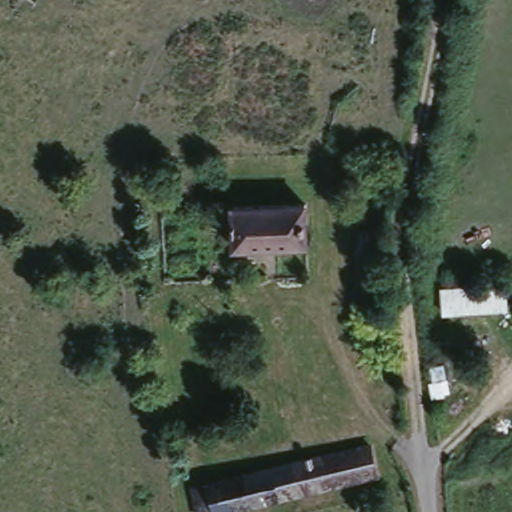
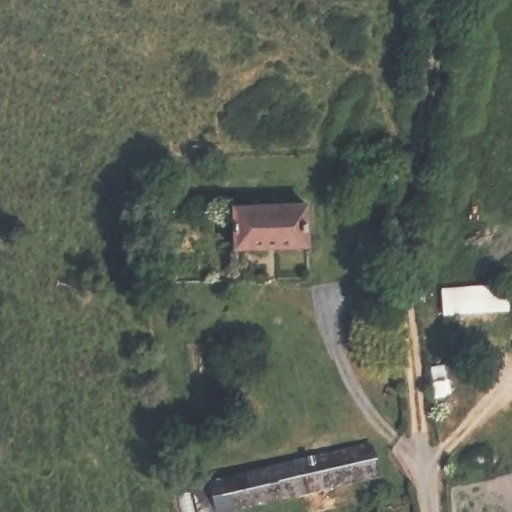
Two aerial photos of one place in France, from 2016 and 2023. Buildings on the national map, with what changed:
unchanged [(307,251),(233,254),(231,212),(304,210),(307,251)]
unchanged [(364,292),(359,258),(356,232),(383,230),(385,256),(379,257),(382,290),(364,292)]
unchanged [(507,284),(508,312),(442,315),(441,289),(507,284)]
unchanged [(387,471),(215,512),(209,512),(202,482),(379,441),(387,471)]

